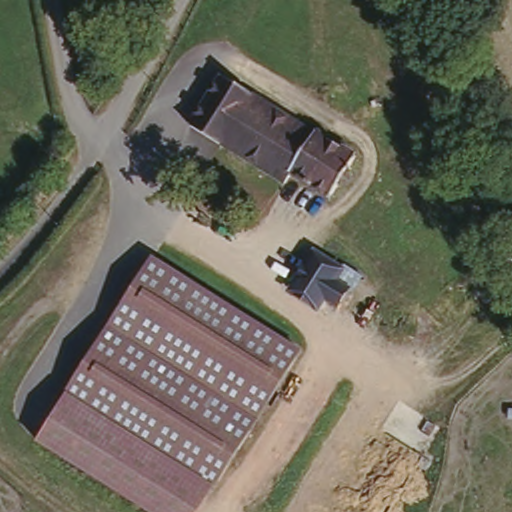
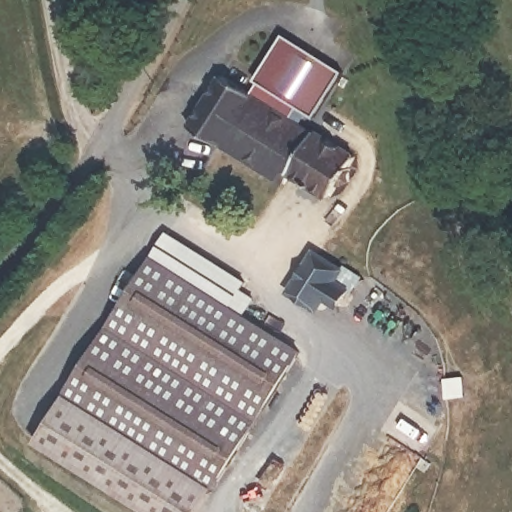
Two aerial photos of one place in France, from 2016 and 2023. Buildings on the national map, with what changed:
new [(248,100),(257,84),(252,81),(282,35),(340,72),(313,119),(296,108),(288,121),(248,100)]
unchanged [(326,205),(298,191),(293,201),(292,201),(292,200),(291,200),(290,199),(289,199),(294,188),(290,186),(288,185),(183,131),(213,75),(247,94),(245,98),(248,100),(288,121),(296,126),(299,122),(354,150),(347,166),(354,171),(345,188),(337,184),(331,194),(330,196),(326,205)]
unchanged [(347,265),(340,280),(353,287),(347,300),(332,293),(324,306),(294,290),(315,247),(347,265)]
unchanged [(66,397),(145,258),(300,343),(219,485),(66,397)]
unchanged [(146,512),(37,443),(66,397),(219,485),(200,512),(146,512)]

